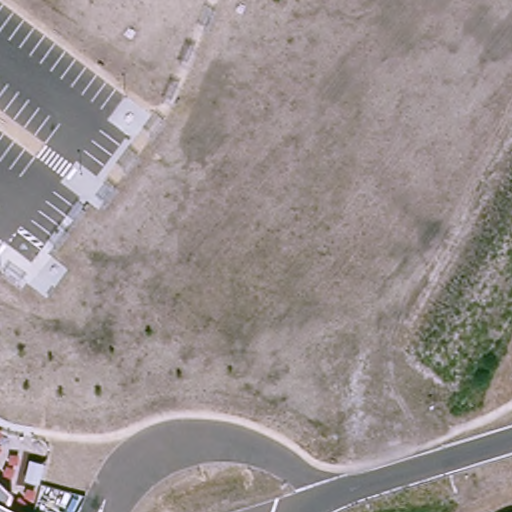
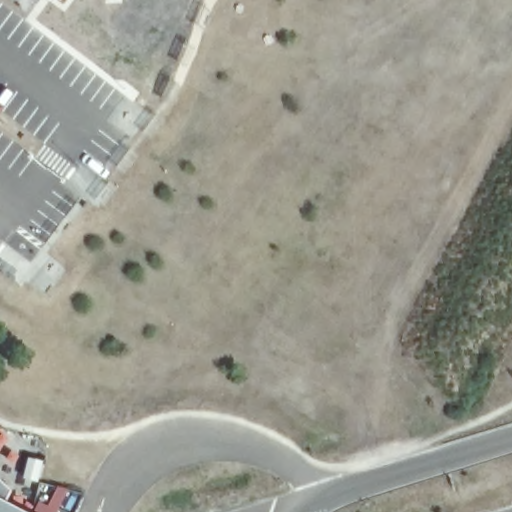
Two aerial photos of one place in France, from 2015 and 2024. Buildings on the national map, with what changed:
unchanged [(6,502),(24,512),(0,512),(0,481),(11,492),(6,502)]

